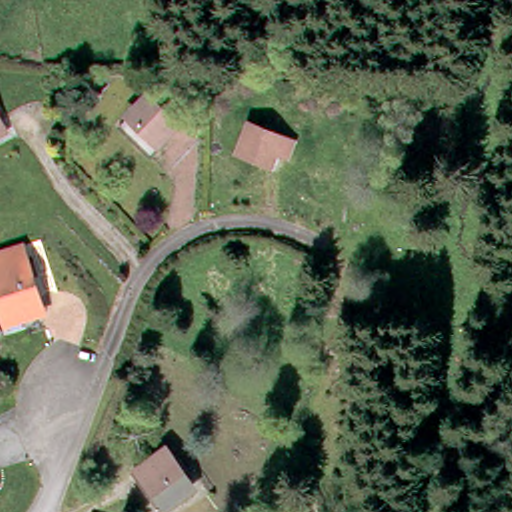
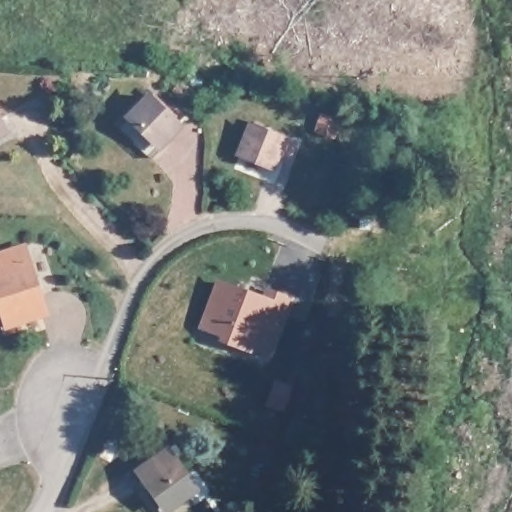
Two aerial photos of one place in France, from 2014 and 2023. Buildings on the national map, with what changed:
unchanged [(131,127),(117,111),(142,90),(185,136),(167,151),(159,157),(131,127)]
unchanged [(0,132),(0,121),(5,130),(0,132)]
unchanged [(249,125),(295,142),(289,161),(269,153),(264,166),(235,152),(249,125)]
unchanged [(41,310),(6,322),(0,305),(0,248),(22,241),(33,272),(40,293),(45,308),(41,310)]
new [(294,297),(281,337),(262,331),(255,353),(219,341),(221,335),(199,327),(216,277),(261,292),(264,285),(294,297)]
unchanged [(140,473),(172,453),(194,492),(161,511),(140,473)]

